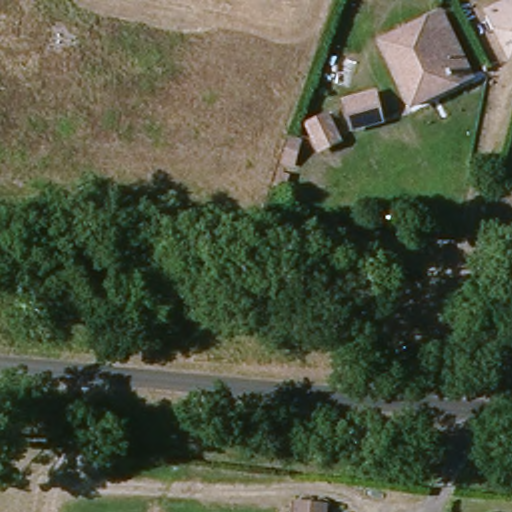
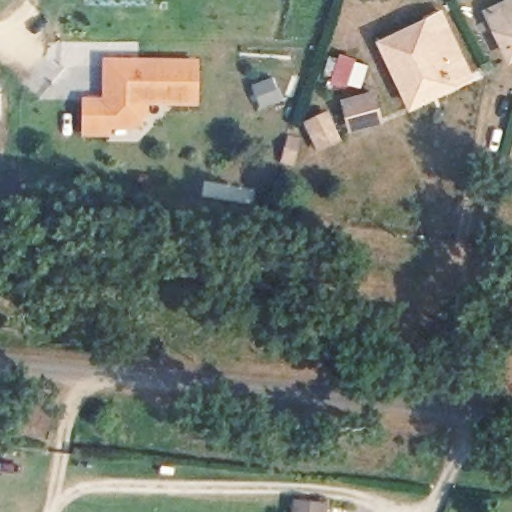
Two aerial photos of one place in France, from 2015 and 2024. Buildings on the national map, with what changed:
unchanged [(495,35),(489,20),(512,8),(512,65),(510,66),(495,35)]
unchanged [(433,15),(446,42),(456,62),(465,81),(452,87),(408,106),(379,42),(433,15)]
new [(86,104),(106,104),(106,89),(114,82),(114,65),(196,66),(195,105),(146,105),(145,119),(135,129),(107,128),(107,135),(85,135),(86,104)]
unchanged [(368,95),(377,119),(350,126),(341,105),(368,95)]
unchanged [(324,116),(329,129),(309,135),(303,121),(324,116)]
unchanged [(292,152),(301,155),(295,172),(286,170),(292,152)]
new [(512,189),(506,188),(512,164),(512,189)]
unchanged [(282,182),(289,185),(284,196),(278,194),(282,182)]
unchanged [(294,506),(327,508),(327,512),(293,512),(294,506)]

